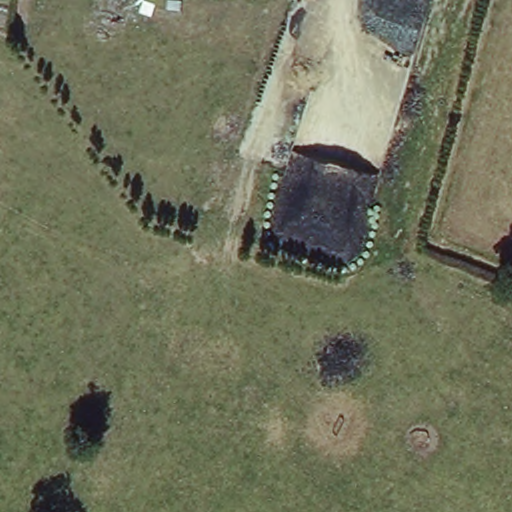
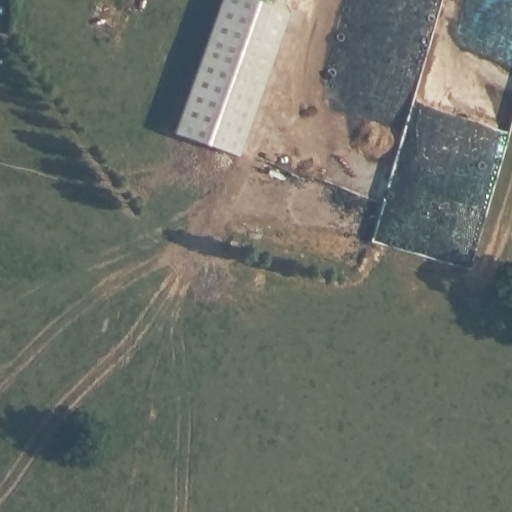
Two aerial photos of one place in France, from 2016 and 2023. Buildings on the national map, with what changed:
new [(291,18),(242,160),(176,137),(223,0),(239,0),(291,18)]

